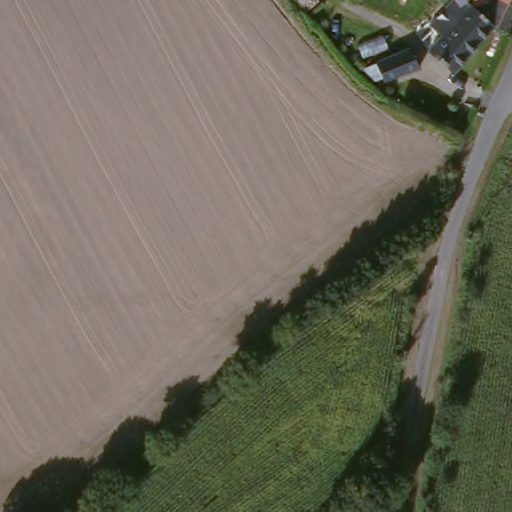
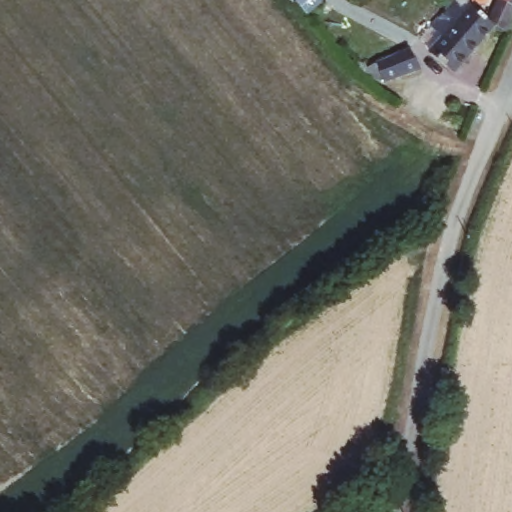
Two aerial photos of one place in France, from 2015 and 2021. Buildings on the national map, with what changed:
unchanged [(423,51),(435,35),(424,25),(448,0),(464,0),(463,1),(485,20),(489,24),(448,73),(423,51)]
unchanged [(489,24),(485,20),(494,0),(512,0),(512,6),(501,31),(489,24)]
unchanged [(382,78),(373,81),(363,69),(375,63),(408,49),(419,68),(383,81),(382,78)]

